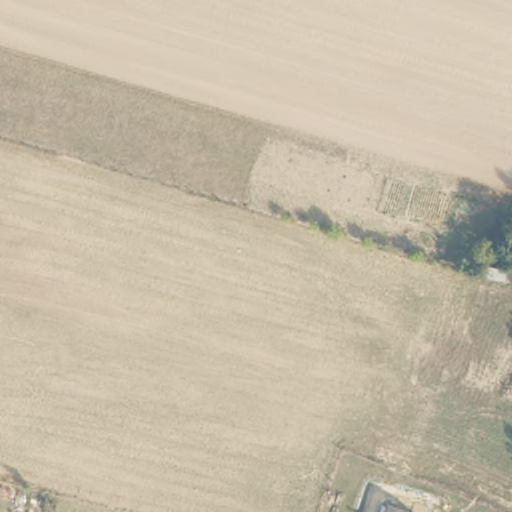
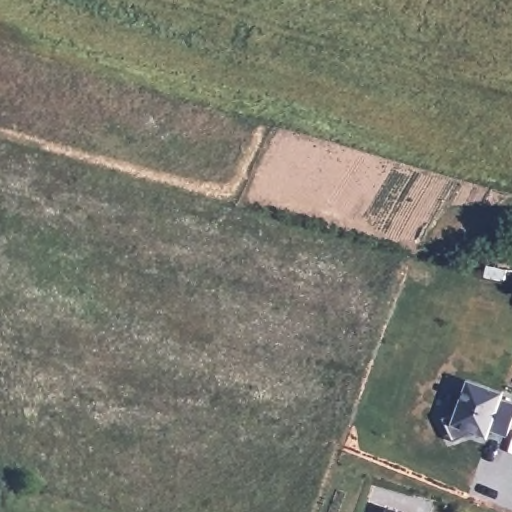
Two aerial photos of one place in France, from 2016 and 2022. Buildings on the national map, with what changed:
new [(501,398),(512,402),(512,422),(507,435),(489,429),(486,437),(475,433),(453,441),(443,418),(455,414),(467,379),(503,392),(501,398)]
demolished [(512,383),(512,402),(505,399),(512,383)]
unchanged [(410,512),(390,512),(392,505),(410,512)]

